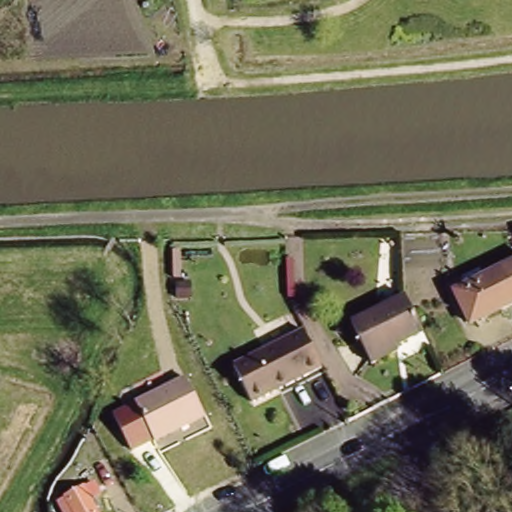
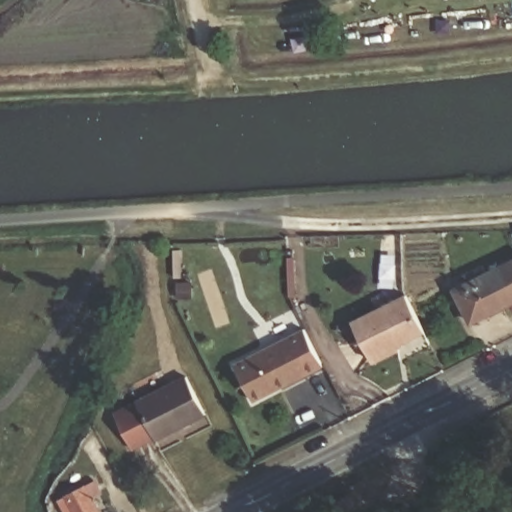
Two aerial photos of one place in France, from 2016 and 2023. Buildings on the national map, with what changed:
unchanged [(512,299),(468,319),(452,287),(512,259),(512,299)]
unchanged [(425,330),(398,344),(400,347),(375,361),(354,321),(407,294),(425,330)]
unchanged [(321,361),(252,397),(232,359),(302,324),(321,361)]
unchanged [(187,366),(205,402),(155,428),(136,391),(187,366)]
unchanged [(67,496),(87,486),(99,512),(65,512),(59,500),(67,496)]

